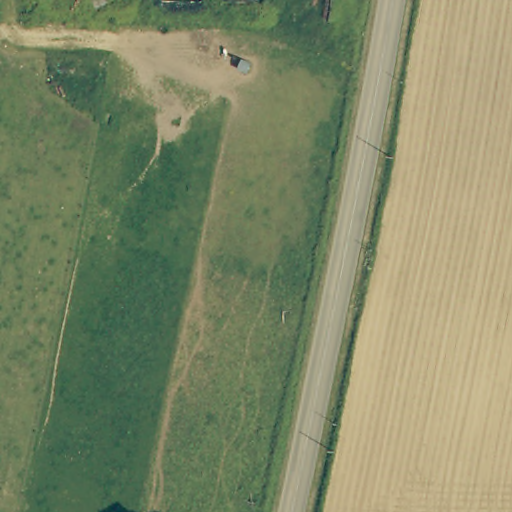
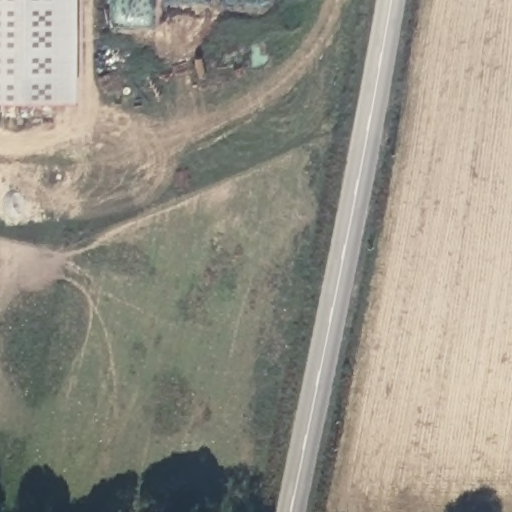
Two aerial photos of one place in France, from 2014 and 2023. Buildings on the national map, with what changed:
new [(75,103),(0,103),(0,0),(76,0),(75,103)]

